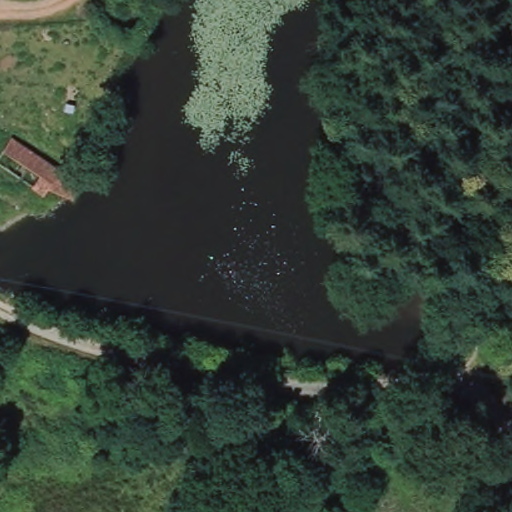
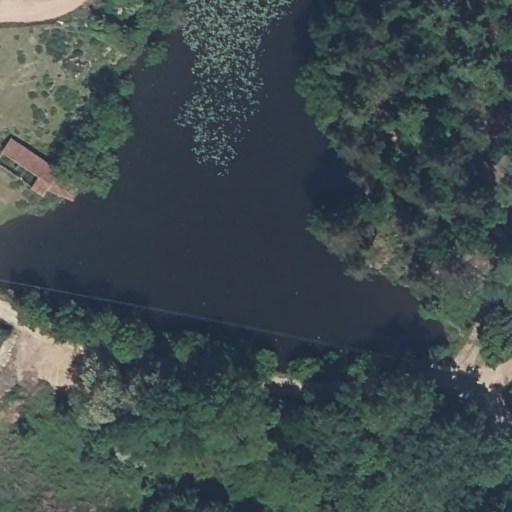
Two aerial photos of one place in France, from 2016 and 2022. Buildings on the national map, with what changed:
unchanged [(80,180),(71,200),(46,188),(42,194),(30,187),(39,174),(1,149),(9,136),(59,169),(80,180)]

